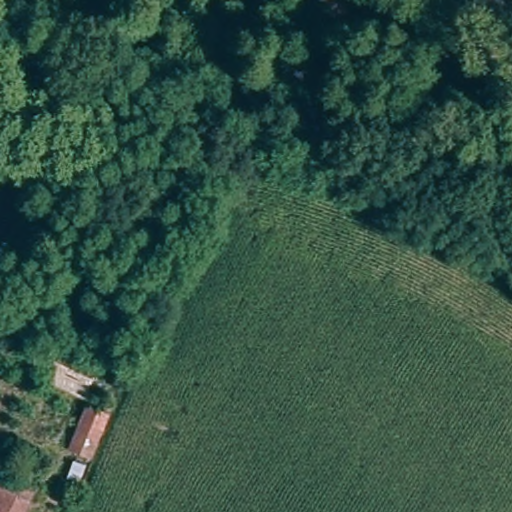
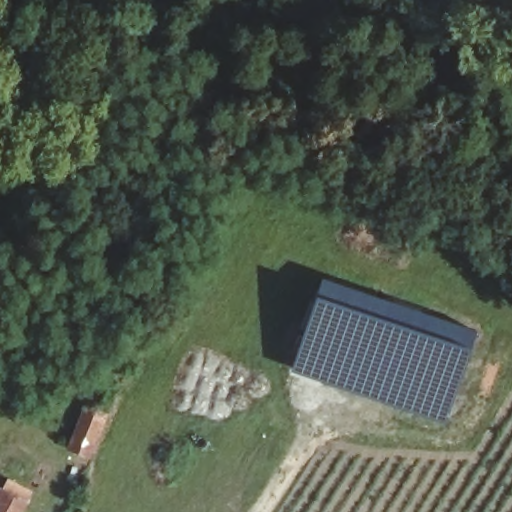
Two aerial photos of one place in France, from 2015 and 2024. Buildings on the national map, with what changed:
new [(322,278),(477,332),(446,424),(291,372),(322,278)]
unchanged [(10,481),(32,493),(22,512),(0,512),(0,488),(5,491),(10,481)]

